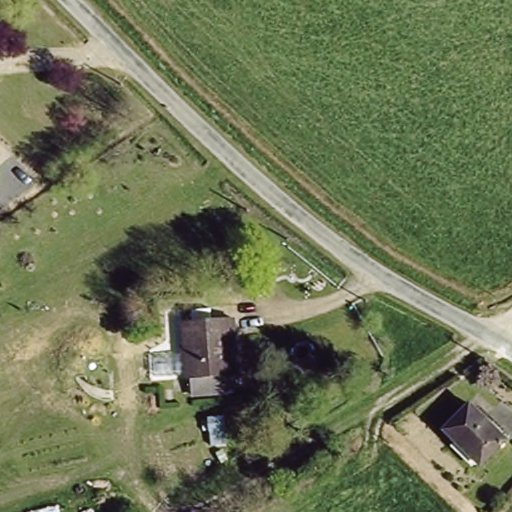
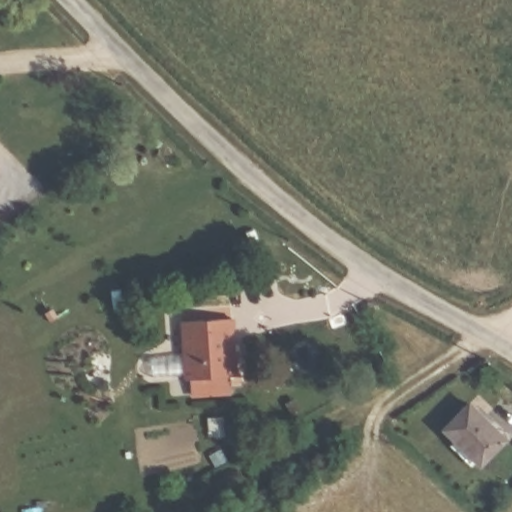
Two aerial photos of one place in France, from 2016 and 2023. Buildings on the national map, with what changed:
unchanged [(241,373),(189,375),(187,318),(239,315),(241,373)]
unchanged [(485,460),(446,424),(470,398),(509,434),(485,460)]
unchanged [(224,430),(209,431),(207,419),(222,418),(224,430)]

